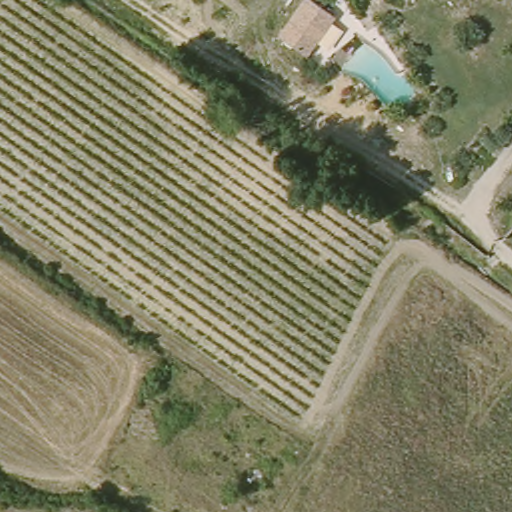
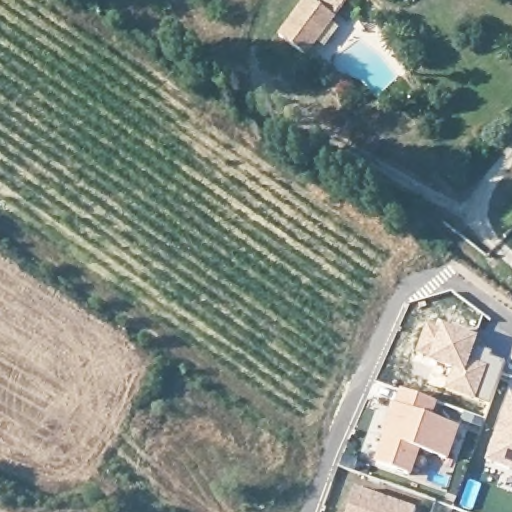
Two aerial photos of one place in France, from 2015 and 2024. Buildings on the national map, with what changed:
unchanged [(300,0),(309,0),(333,16),(305,59),(276,38),(300,0)]
new [(427,323),(441,327),(442,325),(479,338),(477,346),(507,360),(490,406),(442,388),(448,370),(415,356),(427,323)]
new [(403,391),(435,403),(430,418),(457,428),(445,461),(417,451),(408,475),(376,462),(403,391)]
new [(512,395),(512,469),(487,462),(512,395)]
new [(415,511),(415,512),(349,512),(356,487),(415,511)]

